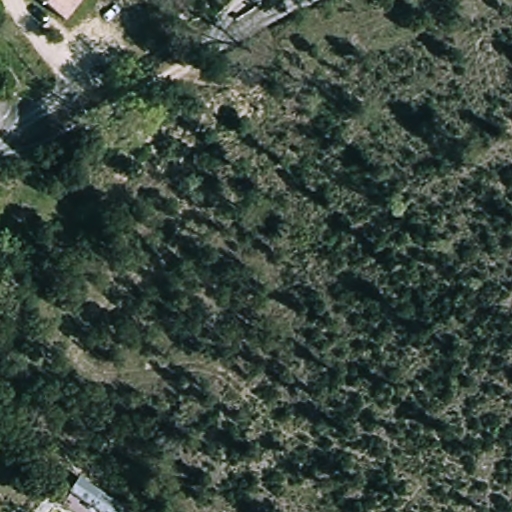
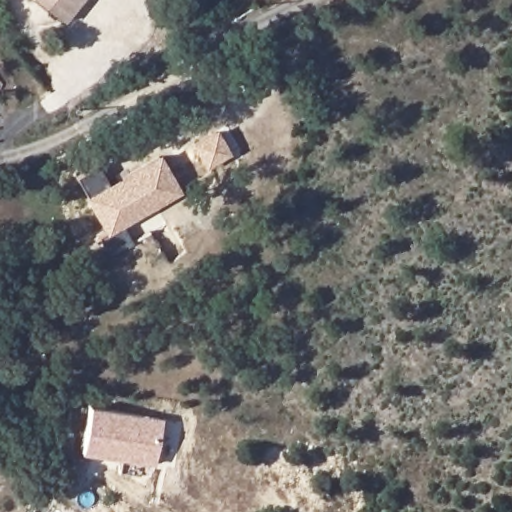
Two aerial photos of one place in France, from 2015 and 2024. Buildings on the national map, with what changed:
unchanged [(63,21),(36,0),(80,0),(63,21)]
new [(123,226),(134,245),(111,257),(98,235),(104,232),(83,196),(87,195),(76,176),(97,164),(107,182),(159,152),(182,192),(123,226)]
new [(162,418),(154,465),(142,462),(140,476),(118,473),(118,458),(79,450),(87,405),(162,418)]

